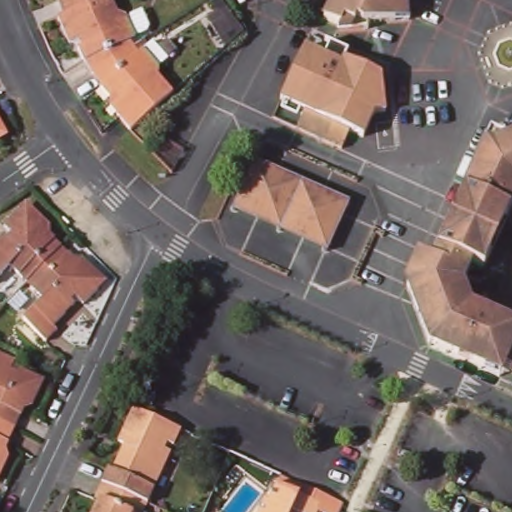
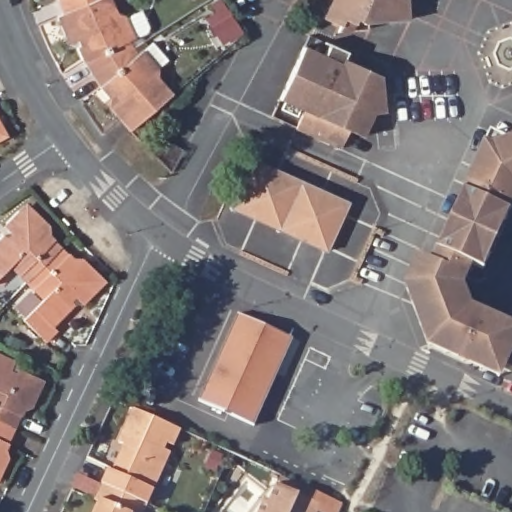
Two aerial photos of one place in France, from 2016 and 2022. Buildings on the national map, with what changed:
unchanged [(67,12),(89,3),(95,1),(96,0),(114,0),(123,18),(128,17),(137,38),(132,42),(136,48),(133,50),(125,55),(122,56),(95,73),(88,61),(85,61),(80,48),(84,46),(81,41),(72,45),(59,16),(67,12)]
unchanged [(96,0),(95,1),(89,3),(67,12),(63,1),(61,0),(96,0)]
unchanged [(327,0),(403,0),(405,21),(362,24),(362,31),(333,32),(335,27),(318,20),(327,0)]
unchanged [(122,119),(112,107),(118,101),(115,97),(111,100),(102,89),(103,87),(95,73),(122,56),(125,55),(133,50),(136,48),(140,54),(154,43),(171,62),(156,74),(175,96),(151,118),(150,118),(134,133),(122,119)]
unchanged [(303,111),(281,100),(305,45),(343,62),(345,57),(381,75),(387,111),(371,113),(362,136),(347,130),(340,148),(297,128),(303,111)]
unchanged [(7,134),(0,138),(0,120),(7,134)]
unchanged [(422,336),(403,284),(416,257),(417,257),(428,263),(458,196),(480,147),(486,134),(501,141),(507,143),(512,141),(512,197),(478,274),(481,281),(471,284),(462,280),(459,287),(467,308),(512,328),(512,376),(500,371),(495,378),(426,346),(422,336)]
unchanged [(255,162),(352,206),(330,257),(231,213),(255,162)]
unchanged [(7,266),(0,273),(0,236),(1,235),(5,238),(10,233),(2,225),(25,203),(48,225),(44,229),(54,239),(52,241),(57,246),(49,254),(44,259),(40,264),(22,281),(7,266)]
unchanged [(39,297),(22,281),(40,264),(44,259),(49,254),(57,246),(64,253),(66,251),(75,261),(80,258),(100,280),(79,302),(72,295),(67,300),(71,304),(50,325),(53,329),(42,339),(19,316),(39,297)]
new [(199,399),(236,312),(292,336),(254,425),(199,399)]
unchanged [(10,363),(5,373),(13,377),(15,372),(40,384),(28,410),(22,408),(17,421),(15,419),(10,432),(0,428),(0,358),(10,363)]
unchanged [(110,470),(114,472),(125,449),(119,445),(134,413),(139,416),(180,434),(172,450),(165,447),(162,454),(169,457),(146,507),(102,487),(110,470)]
unchanged [(10,432),(4,446),(5,447),(0,456),(0,428),(10,432)]
unchanged [(5,461),(0,470),(0,459),(5,461)]
unchanged [(265,504),(273,489),(277,481),(340,509),(339,512),(256,512),(261,501),(265,504)]
unchanged [(96,512),(99,506),(95,504),(102,487),(146,507),(144,512),(96,512)]

